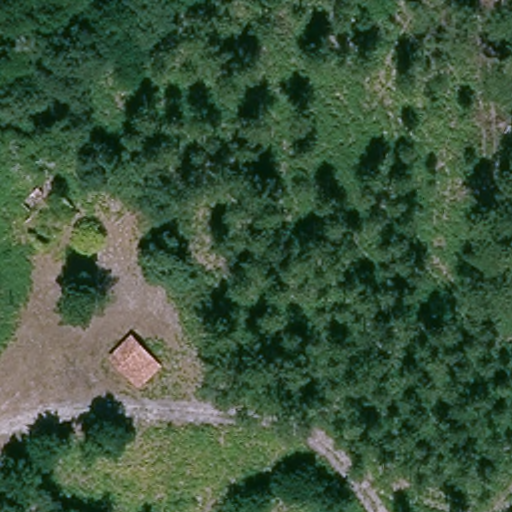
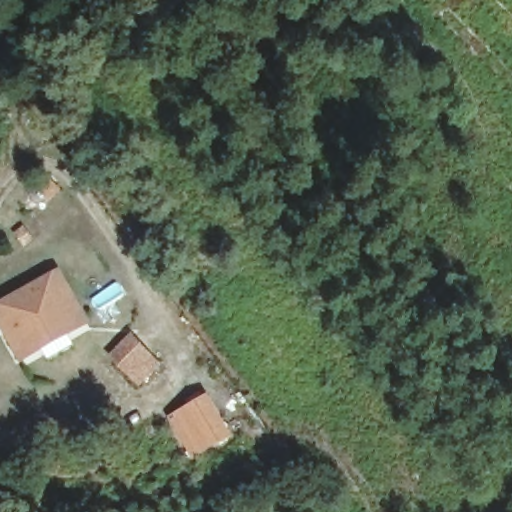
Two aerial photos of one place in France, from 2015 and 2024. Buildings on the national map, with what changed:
new [(0,327),(0,301),(59,267),(89,322),(19,363),(0,327)]
unchanged [(138,382),(111,355),(129,336),(156,363),(138,382)]
new [(207,392),(232,435),(190,460),(165,417),(207,392)]

